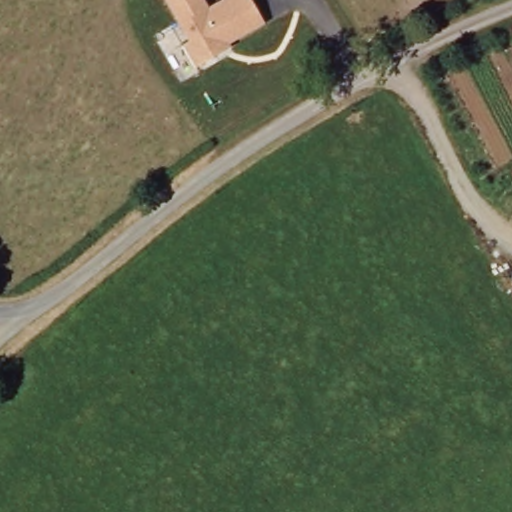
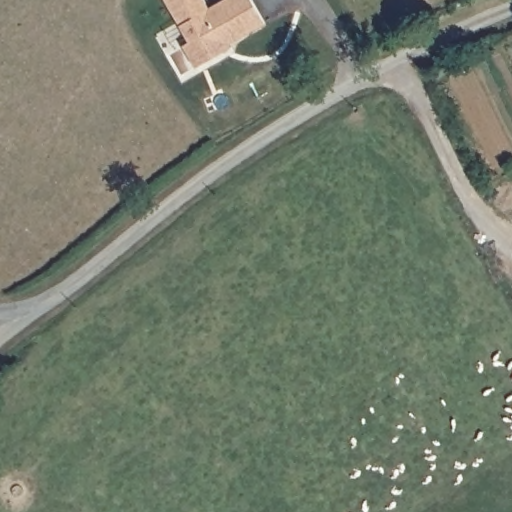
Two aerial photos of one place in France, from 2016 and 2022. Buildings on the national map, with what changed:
unchanged [(208,3),(215,0),(255,0),(266,20),(212,50),(214,58),(199,68),(183,43),(189,39),(166,0),(206,0),(208,3)]

